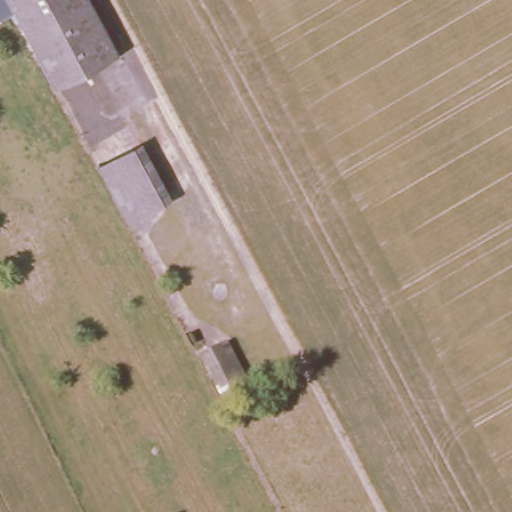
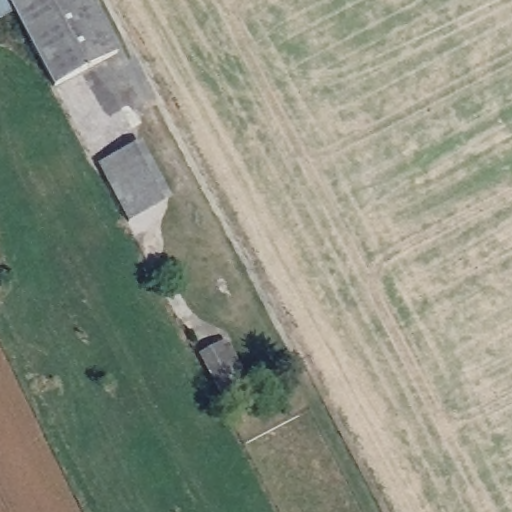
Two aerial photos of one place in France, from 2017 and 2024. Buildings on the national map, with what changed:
unchanged [(123,52),(59,83),(16,0),(95,0),(123,52)]
unchanged [(171,197),(130,220),(102,161),(140,136),(171,197)]
unchanged [(250,379),(219,397),(196,354),(226,337),(250,379)]

